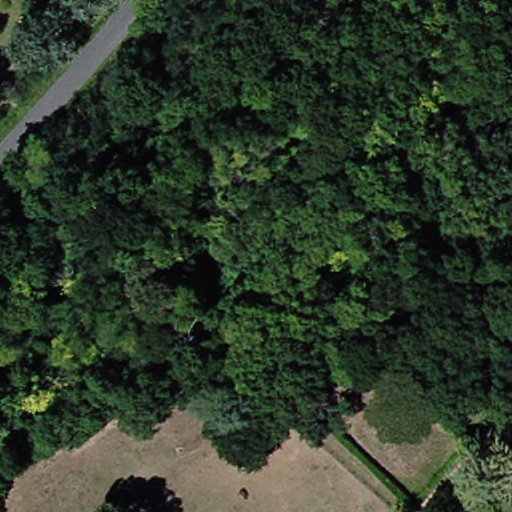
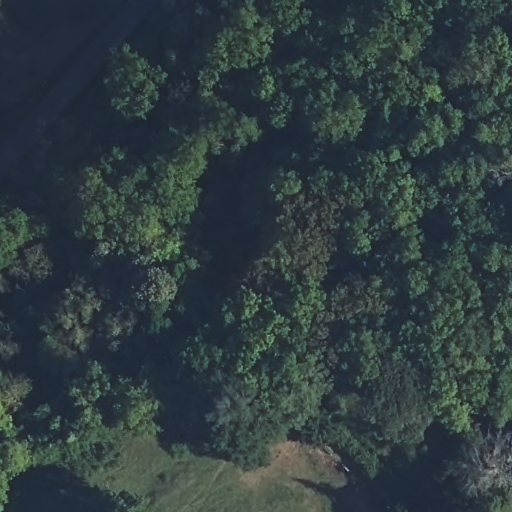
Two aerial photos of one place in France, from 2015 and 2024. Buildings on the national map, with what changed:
unchanged [(304,408),(280,386),(290,376),(314,398),(304,408)]

